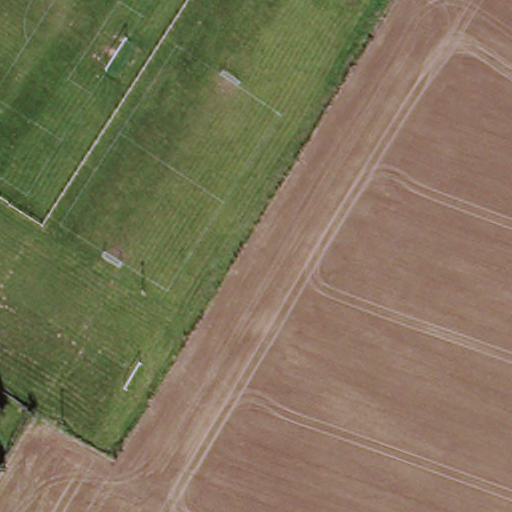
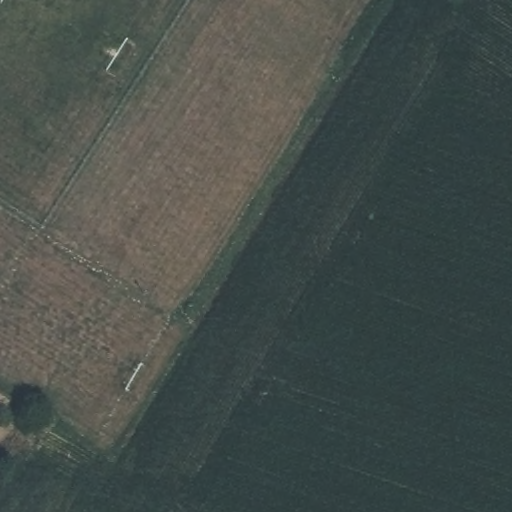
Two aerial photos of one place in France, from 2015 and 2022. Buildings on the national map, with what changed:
[]

